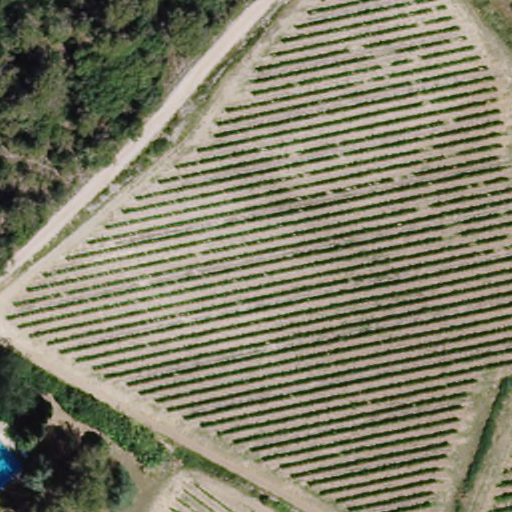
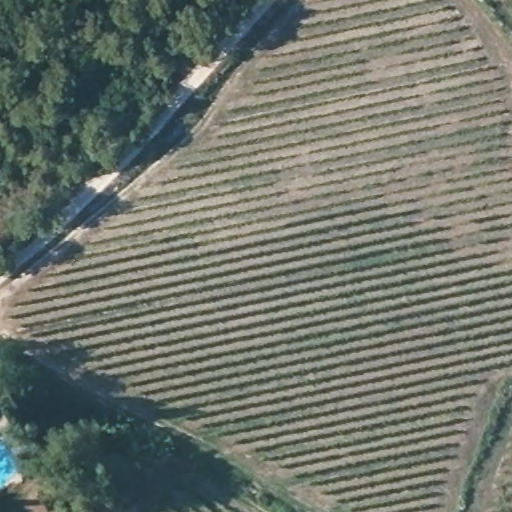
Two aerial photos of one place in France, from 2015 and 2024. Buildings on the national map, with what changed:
unchanged [(37,405),(19,436),(0,423),(0,420),(18,395),(37,405)]

